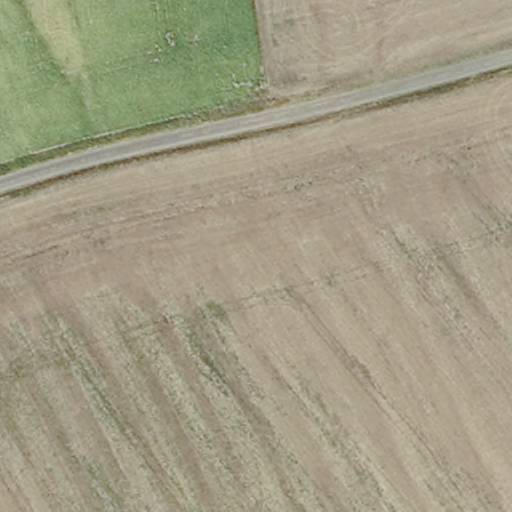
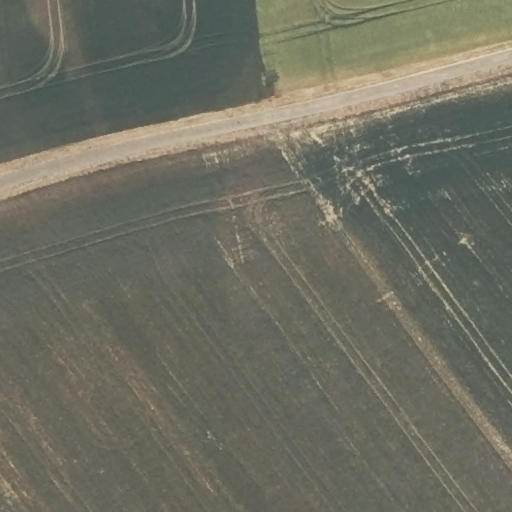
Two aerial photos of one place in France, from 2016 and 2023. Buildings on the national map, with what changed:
[]

